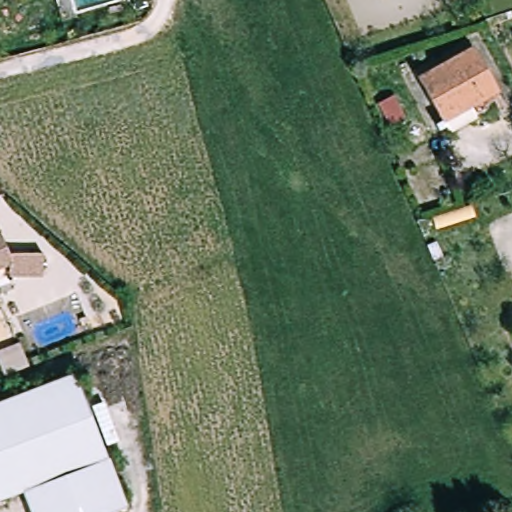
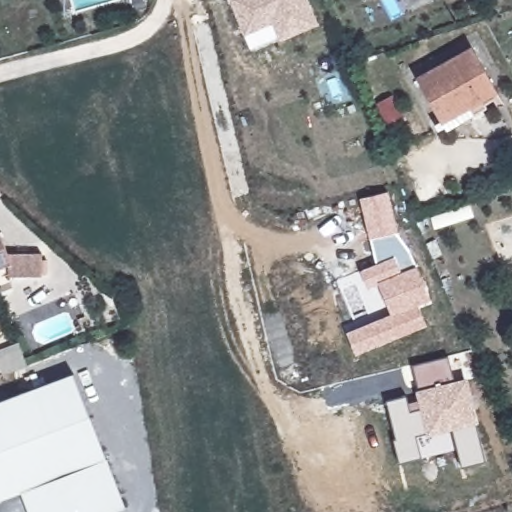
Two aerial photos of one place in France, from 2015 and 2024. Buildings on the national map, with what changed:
new [(316,24),(280,41),(272,26),(245,37),(229,0),(306,0),(316,24)]
unchanged [(476,46),(502,92),(448,123),(421,76),(476,46)]
new [(393,96),(403,118),(387,125),(378,101),(393,96)]
unchanged [(401,118),(410,140),(395,147),(386,124),(401,118)]
new [(356,355),(346,332),(391,313),(379,282),(368,288),(360,270),(376,263),(359,197),(388,190),(397,231),(410,250),(416,266),(432,299),(418,305),(428,326),(356,355)]
new [(475,217),(436,230),(431,216),(471,203),(475,217)]
unchanged [(44,283),(11,281),(12,270),(0,274),(0,227),(11,259),(46,262),(44,283)]
new [(19,343),(27,365),(3,375),(0,368),(0,350),(19,343)]
new [(462,467),(452,429),(427,436),(426,431),(416,435),(421,456),(400,462),(393,439),(396,439),(387,400),(406,395),(409,411),(418,409),(421,409),(416,392),(416,391),(419,390),(413,364),(449,355),(455,381),(468,377),(480,422),(475,423),(485,461),(462,467)]
unchanged [(124,508),(114,512),(28,512),(21,492),(0,500),(0,402),(74,375),(124,508)]

